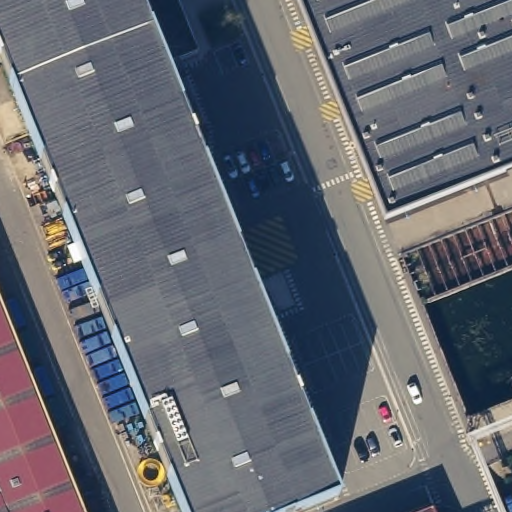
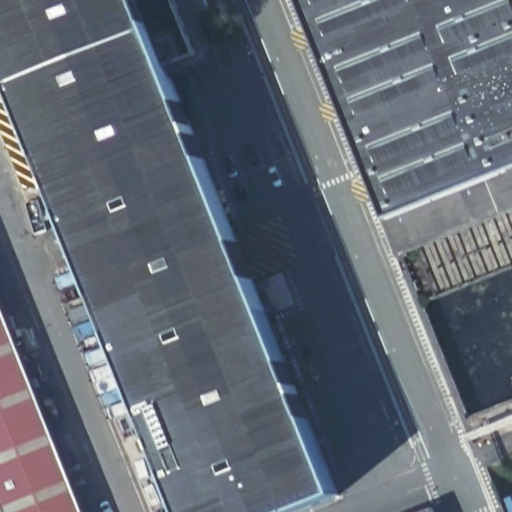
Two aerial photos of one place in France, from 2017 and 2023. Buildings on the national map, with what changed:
unchanged [(340,486),(273,512),(186,512),(0,46),(0,0),(144,0),(167,58),(340,486)]
unchanged [(167,58),(144,0),(180,0),(198,45),(167,58)]
unchanged [(298,0),(512,0),(512,168),(385,219),(298,0)]
unchanged [(0,290),(88,512),(0,512),(0,290)]
unchanged [(432,508),(434,512),(423,512),(432,508)]

